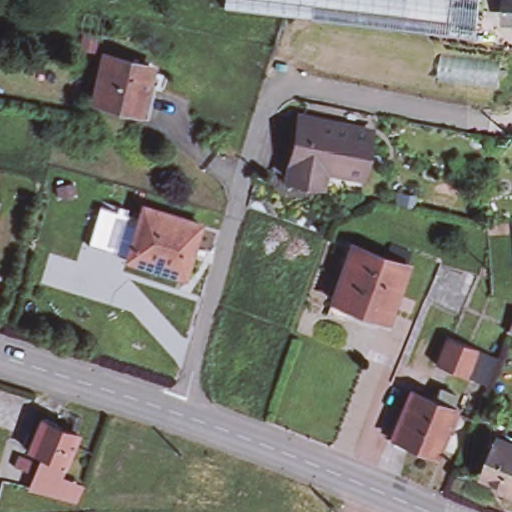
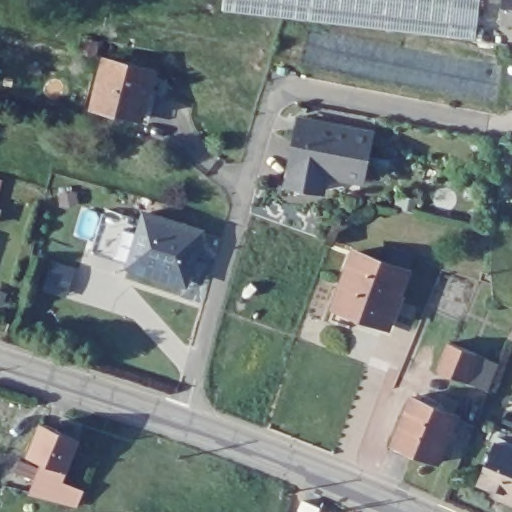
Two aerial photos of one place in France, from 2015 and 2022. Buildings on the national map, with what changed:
unchanged [(479,7),(476,40),(223,11),(224,0),(479,0),(479,7)]
unchanged [(507,0),(512,0),(512,19),(507,19),(507,0)]
unchanged [(100,51),(96,65),(82,62),(84,49),(100,51)]
unchanged [(152,79),(142,125),(95,114),(105,69),(152,79)]
unchanged [(372,132),(362,179),(327,172),(323,187),(288,181),(301,117),(372,132)]
unchanged [(4,181),(0,196),(0,180),(4,181)]
unchanged [(3,211),(0,225),(0,210),(3,211)]
unchanged [(96,252),(109,212),(147,225),(135,264),(96,252)]
unchanged [(147,225),(150,212),(207,230),(191,282),(135,264),(147,225)]
unchanged [(393,254),(414,262),(409,275),(388,329),(334,309),(355,256),(387,267),(393,254)]
unchanged [(512,328),(512,337),(509,336),(512,328)]
unchanged [(460,346),(487,357),(475,385),(448,373),(460,346)]
unchanged [(457,412),(439,461),(392,442),(412,395),(457,412)]
unchanged [(82,437),(69,471),(64,481),(86,488),(78,507),(28,493),(39,458),(25,453),(39,422),(82,437)]
unchanged [(512,448),(512,501),(495,495),(497,487),(477,480),(494,441),(512,448)]

